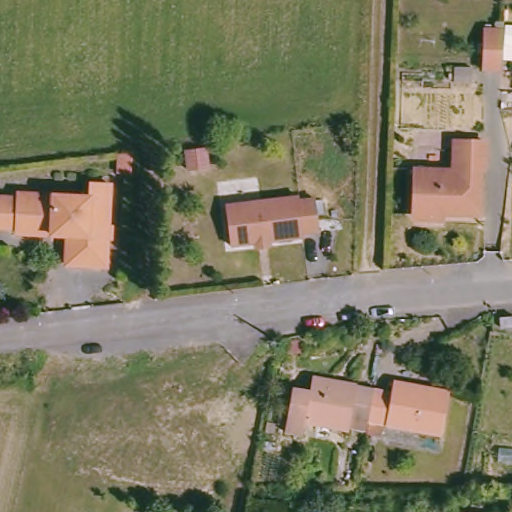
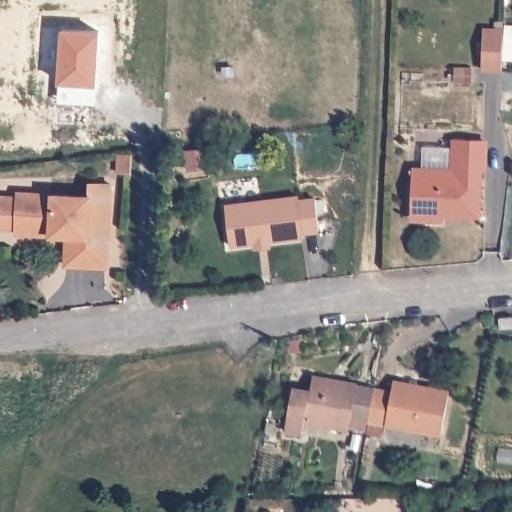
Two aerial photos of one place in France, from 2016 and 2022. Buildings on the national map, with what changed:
unchanged [(503,26),(502,65),(482,65),(483,25),(503,26)]
new [(60,32),(96,34),(93,86),(92,105),(55,103),(57,84),(60,32)]
unchanged [(437,216),(423,215),(415,206),(416,164),(455,165),(457,134),(485,135),(482,211),(447,210),(447,216),(437,216)]
unchanged [(202,151),(205,171),(185,173),(182,154),(202,151)]
unchanged [(128,154),(127,175),(115,175),(115,155),(128,154)]
unchanged [(90,194),(90,180),(109,181),(107,263),(65,262),(66,227),(50,227),(50,230),(15,229),(15,225),(0,225),(0,194),(16,195),(16,191),(90,194)]
unchanged [(256,249),(256,242),(229,246),(225,204),(295,196),(296,201),(316,200),(319,231),(304,232),(305,237),(269,241),(270,247),(256,249)]
unchanged [(512,329),(502,331),(500,321),(512,320),(512,329)]
unchanged [(365,418),(347,415),(345,427),(301,419),(299,431),(282,428),(290,387),(306,390),(308,377),(335,382),(336,379),(354,382),(353,385),(370,388),(365,418)]
unchanged [(370,388),(387,391),(390,379),(445,389),(438,431),(365,418),(370,388)]

